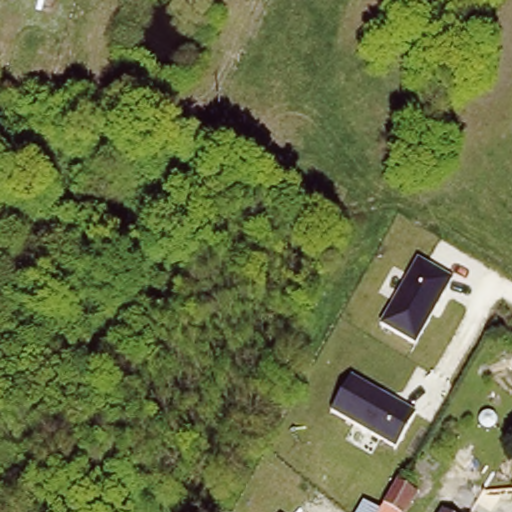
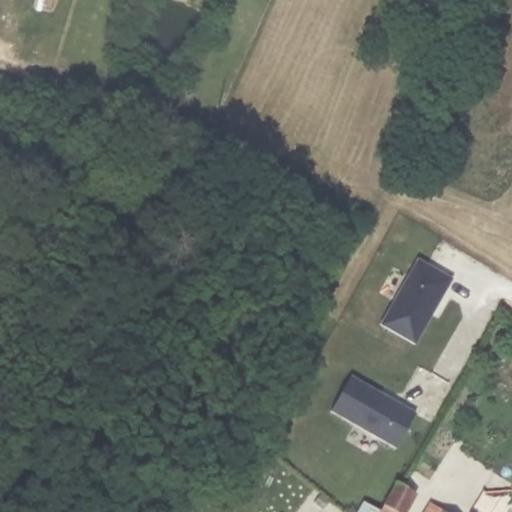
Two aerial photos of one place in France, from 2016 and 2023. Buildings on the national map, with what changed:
unchanged [(381,323),(417,257),(452,278),(415,342),(381,323)]
unchanged [(332,408),(352,375),(415,412),(396,445),(332,408)]
unchanged [(420,498),(411,512),(397,512),(386,505),(397,485),(420,498)]

